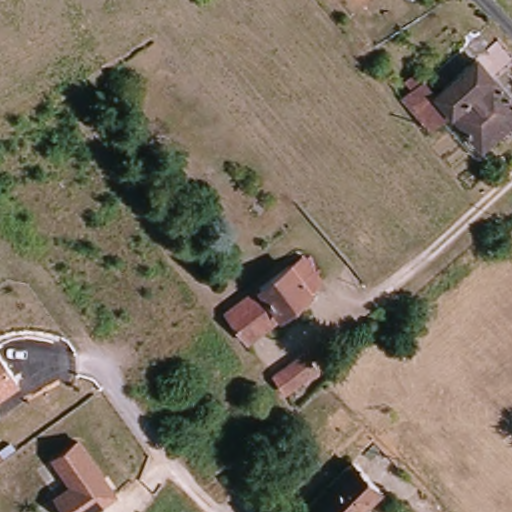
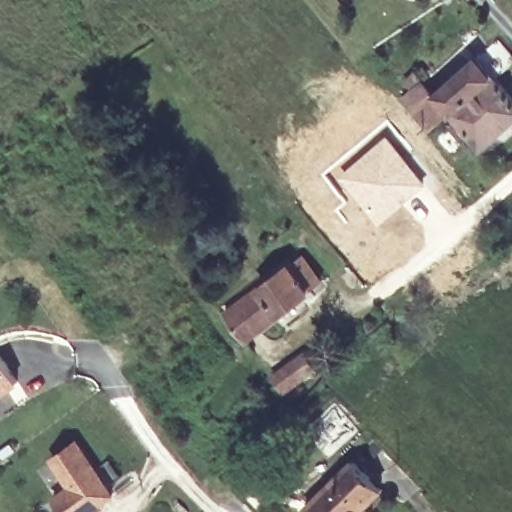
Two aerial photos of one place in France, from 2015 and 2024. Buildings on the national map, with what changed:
unchanged [(356,1),(356,0),(357,0),(356,1)]
unchanged [(443,93),(447,97),(488,62),(489,64),(502,59),(497,53),(510,43),(512,45),(512,78),(506,83),(512,89),(512,133),(493,150),(462,115),(444,130),(425,109),(443,93)]
new [(335,166),(339,171),(386,131),(427,183),(378,225),(327,172),(335,166)]
unchanged [(235,317),(311,256),(330,280),(252,341),(235,317)]
unchanged [(0,396),(0,352),(20,382),(0,396)]
unchanged [(275,373),(301,354),(316,373),(290,394),(275,373)]
unchanged [(74,512),(58,491),(74,479),(56,454),(81,436),(117,487),(82,512),(74,512)]
unchanged [(323,512),(317,507),(365,460),(393,488),(374,506),(380,512),(323,512)]

